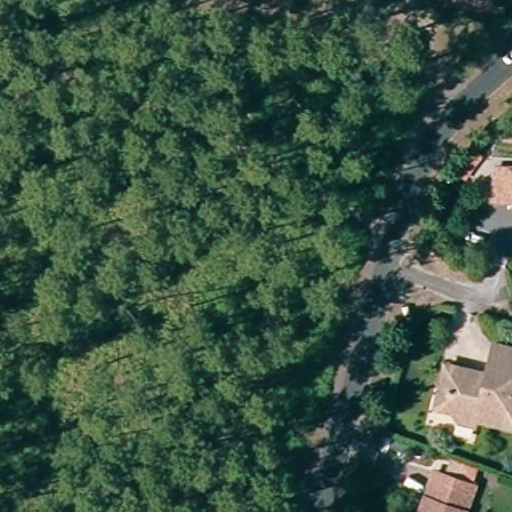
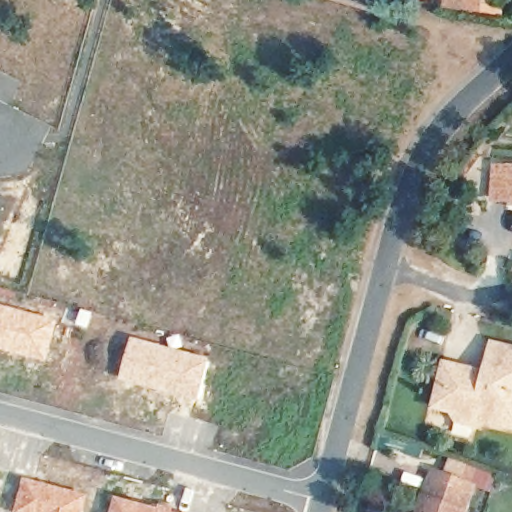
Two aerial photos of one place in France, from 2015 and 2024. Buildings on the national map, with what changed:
unchanged [(460,0),(460,7),(438,3),(439,0),(460,0)]
unchanged [(503,203),(488,202),(490,170),(505,171),(512,171),(512,203),(503,203)]
new [(46,364),(0,351),(0,305),(57,320),(46,364)]
new [(130,338),(208,360),(195,406),(117,379),(130,338)]
unchanged [(473,419),(472,425),(452,420),(445,406),(432,404),(439,361),(460,365),(459,372),(482,377),(486,360),(490,343),(512,347),(512,427),(473,419)]
unchanged [(427,484),(432,471),(469,486),(465,498),(460,512),(417,512),(427,484)]
new [(22,477),(87,494),(82,512),(12,512),(22,477)]
new [(114,496),(165,508),(177,512),(108,512),(114,496)]

